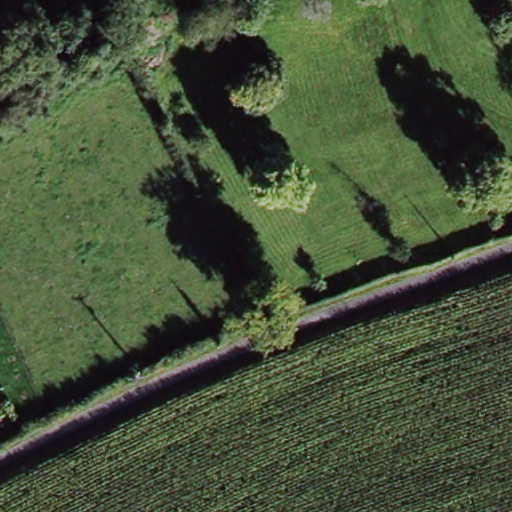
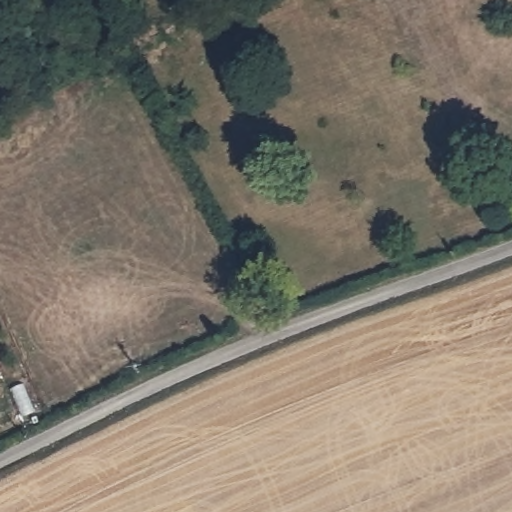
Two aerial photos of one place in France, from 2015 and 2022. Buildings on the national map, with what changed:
[]

